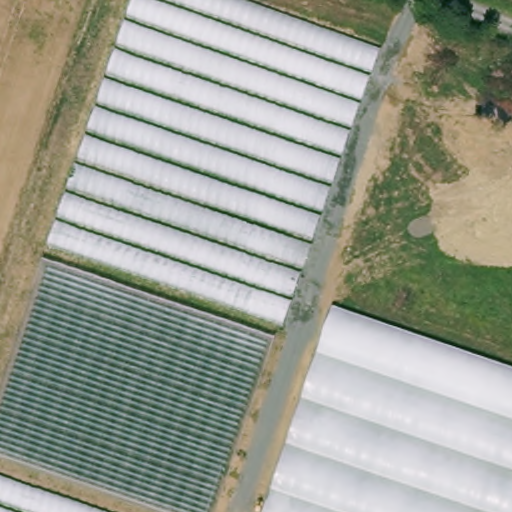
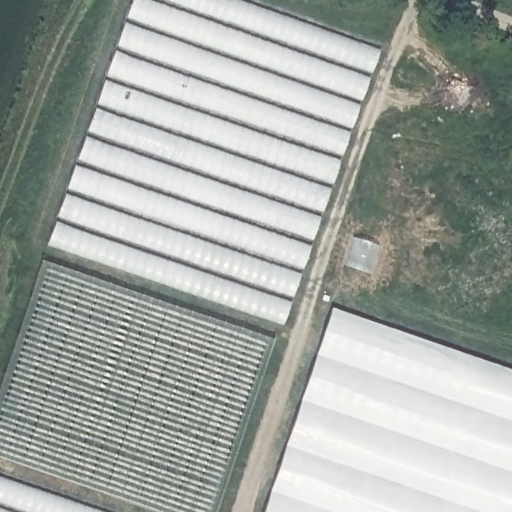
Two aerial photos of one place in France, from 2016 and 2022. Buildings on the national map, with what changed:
unchanged [(135,0),(228,0),(379,54),(353,124),(282,325),(49,243),(135,0)]
unchanged [(274,333),(216,512),(163,512),(0,455),(0,385),(43,258),(274,333)]
unchanged [(512,368),(512,512),(267,512),(336,306),(512,368)]
unchanged [(0,480),(94,512),(0,512),(0,480)]

